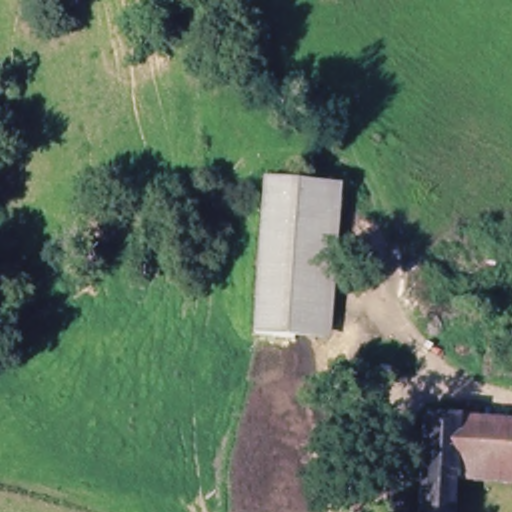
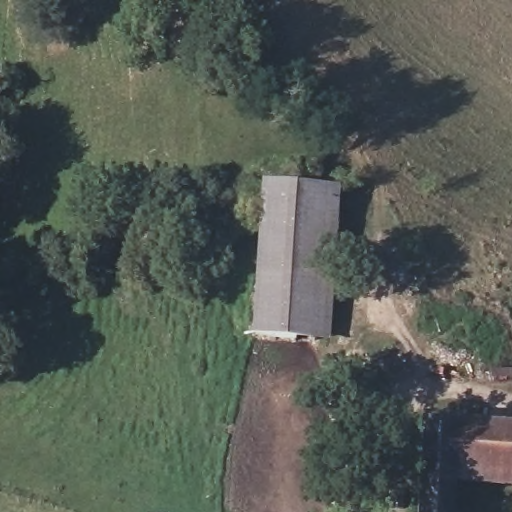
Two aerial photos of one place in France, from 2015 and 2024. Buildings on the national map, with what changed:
unchanged [(253,341),(255,288),(260,190),(323,194),(339,195),(334,300),(332,345),(317,344),(253,341)]
unchanged [(466,405),(491,406),(490,423),(512,426),(512,484),(456,478),(454,512),(419,512),(421,418),(465,420),(466,405)]

